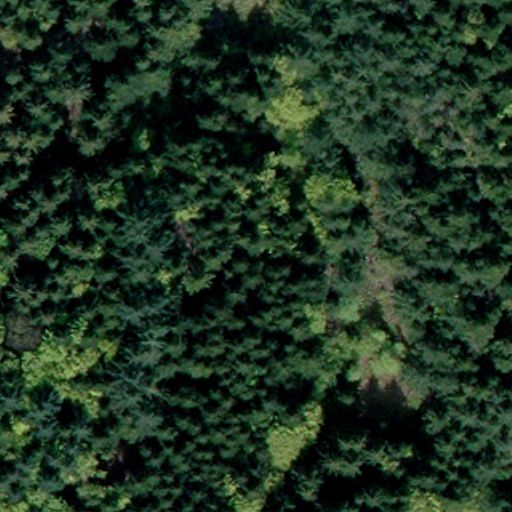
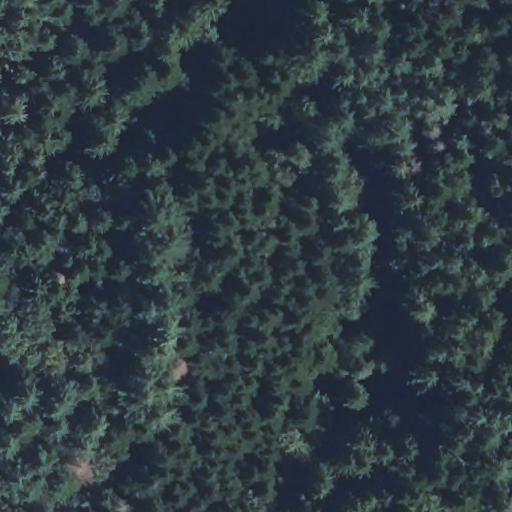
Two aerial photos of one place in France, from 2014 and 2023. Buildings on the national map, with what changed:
unchanged [(273,35),(241,37),(238,0),(270,0),(273,35)]

